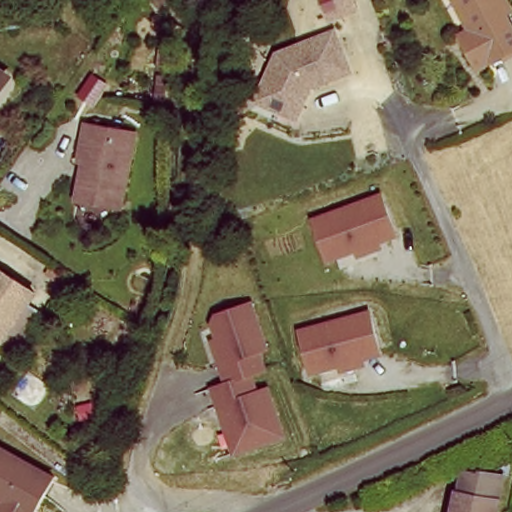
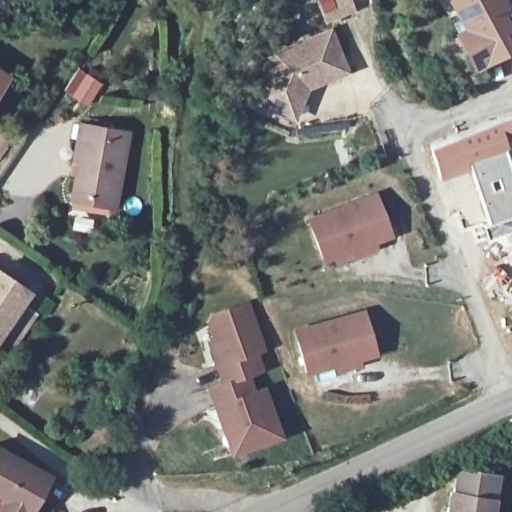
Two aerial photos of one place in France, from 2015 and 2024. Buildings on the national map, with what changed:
unchanged [(311,0),(346,0),(352,16),(320,26),(311,0)]
unchanged [(465,32),(447,0),(498,0),(505,12),(499,15),(506,27),(512,38),(512,50),(490,62),(475,71),(456,38),(465,32)]
unchanged [(276,115),(259,109),(248,105),(254,88),(266,57),(321,34),(338,72),(299,90),(287,120),(276,115)]
new [(512,117),(512,149),(509,150),(467,164),(467,173),(468,176),(463,177),(458,179),(440,184),(429,146),(512,117)]
unchanged [(71,195),(82,145),(78,144),(82,126),(129,137),(111,212),(84,206),(69,202),(71,195)]
new [(467,164),(509,150),(512,162),(512,234),(487,242),(482,226),(485,225),(469,180),(468,176),(467,173),(467,164)]
new [(458,179),(460,186),(463,185),(464,187),(467,186),(466,180),(469,180),(485,225),(482,226),(460,232),(450,202),(440,184),(458,179)]
unchanged [(308,230),(375,202),(391,242),(324,270),(308,230)]
unchanged [(0,328),(0,274),(26,295),(0,328)]
unchanged [(204,322),(236,307),(256,353),(249,357),(256,374),(243,380),(250,396),(260,392),(280,438),(239,456),(219,411),(214,413),(206,395),(219,390),(212,372),(202,351),(208,349),(200,332),(204,322)]
unchanged [(364,307),(379,348),(312,373),(297,332),(364,307)]
unchanged [(37,512),(0,512),(0,510),(4,504),(0,502),(0,455),(52,487),(37,512)]
unchanged [(450,493),(455,492),(459,470),(476,473),(477,468),(495,472),(487,512),(446,512),(450,493)]

